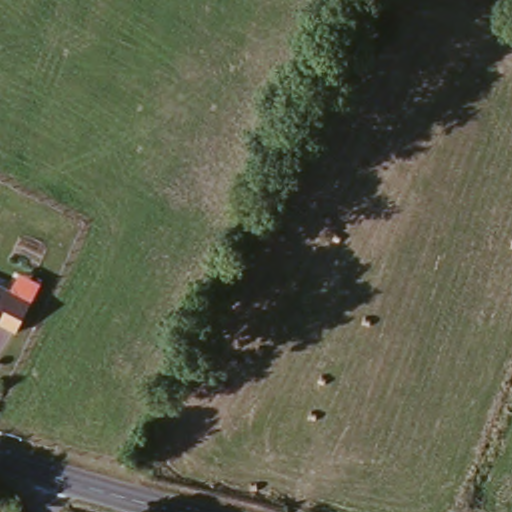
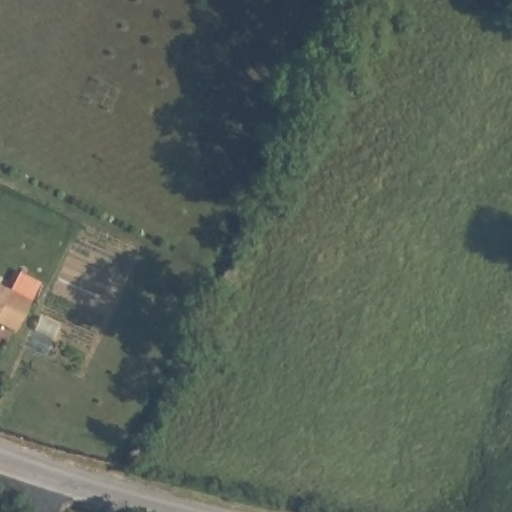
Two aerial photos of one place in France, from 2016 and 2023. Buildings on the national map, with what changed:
unchanged [(0,313),(0,280),(12,286),(0,313)]

